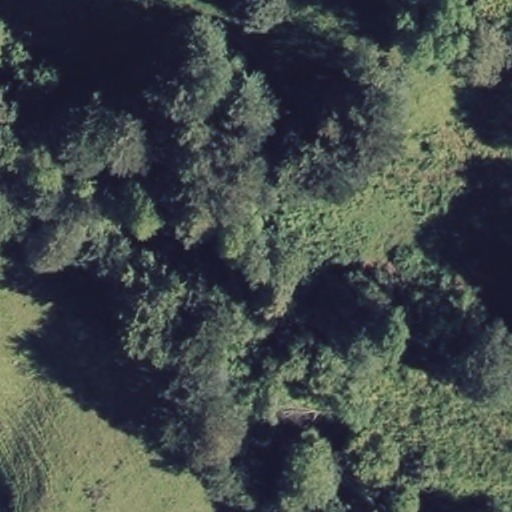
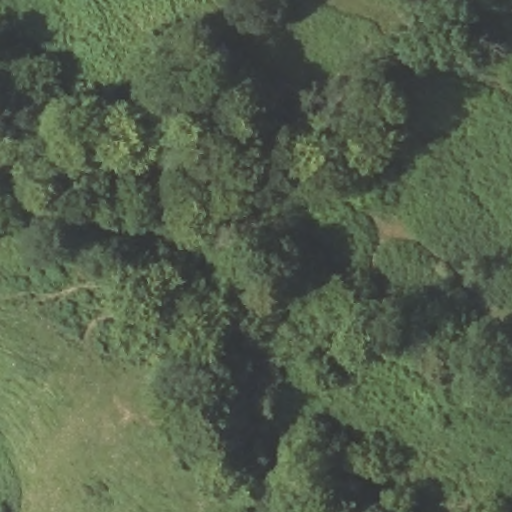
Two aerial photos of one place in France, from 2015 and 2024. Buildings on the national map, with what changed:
unchanged [(442,4),(446,0),(490,0),(470,24),(442,4)]

